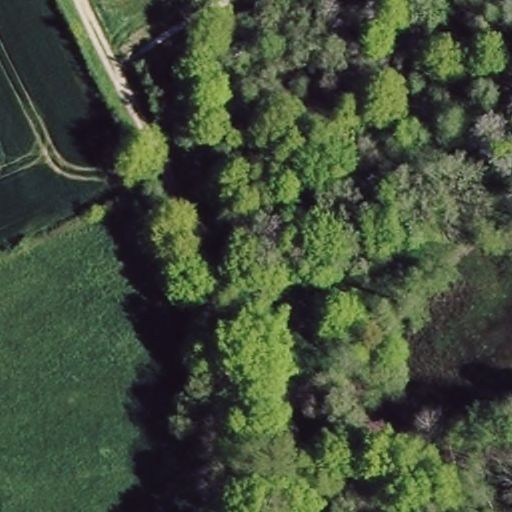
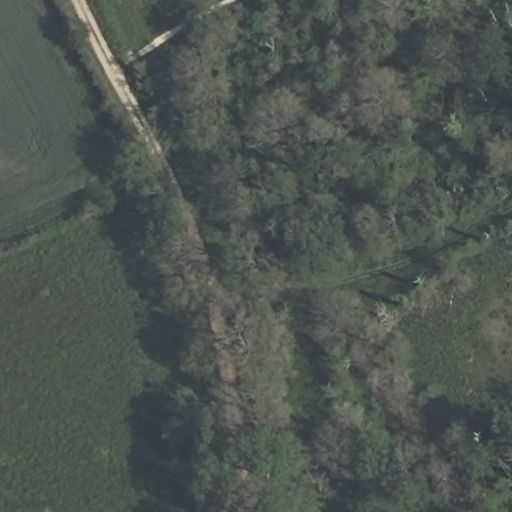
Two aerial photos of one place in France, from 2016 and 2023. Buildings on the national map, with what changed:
[]

